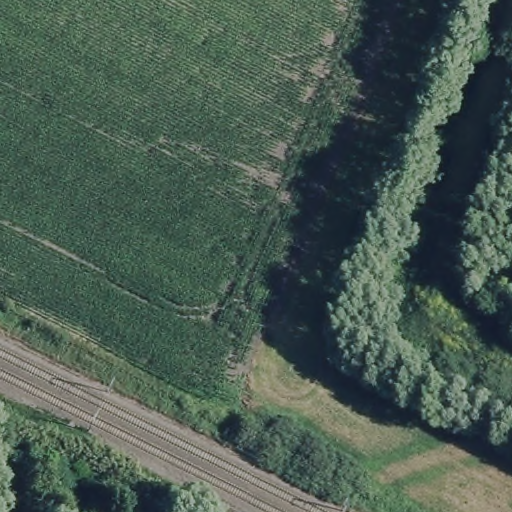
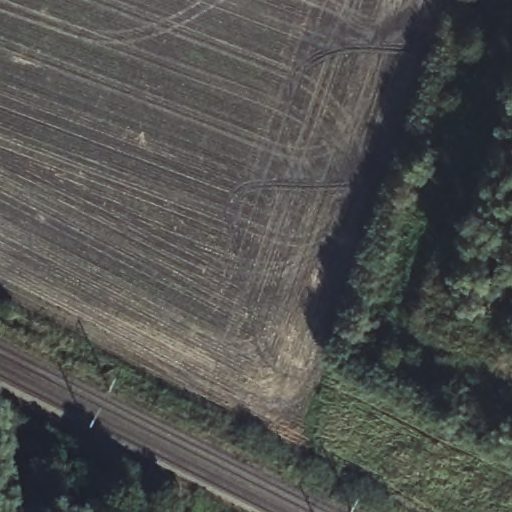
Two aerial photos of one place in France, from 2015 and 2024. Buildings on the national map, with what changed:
unchanged [(149,499),(148,512),(132,512),(134,497),(149,499)]

